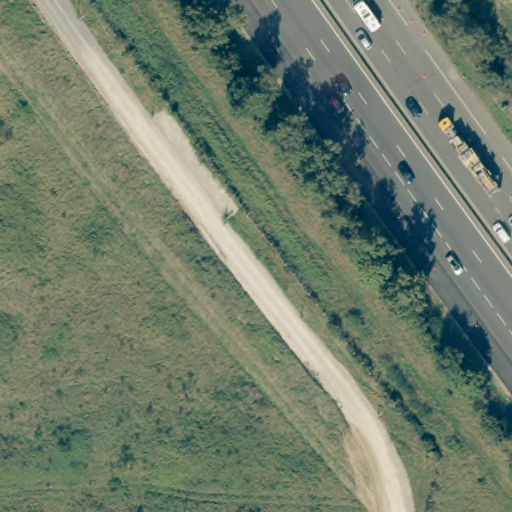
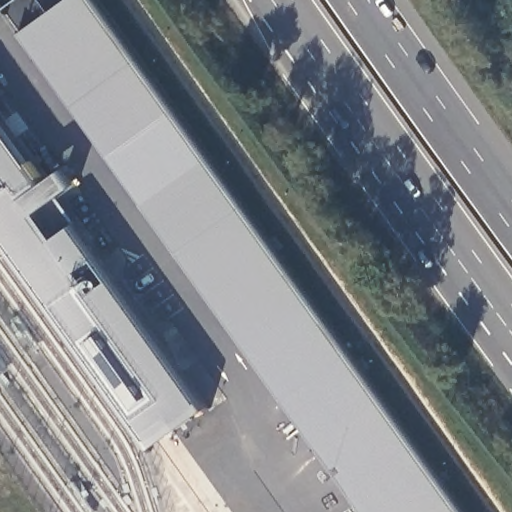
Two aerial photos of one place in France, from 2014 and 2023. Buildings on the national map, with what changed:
new [(0,5),(0,0),(96,0),(462,512),(363,512),(0,5)]
new [(64,170),(77,189),(61,200),(81,230),(208,411),(155,449),(0,238),(0,124),(44,185),(64,170)]

